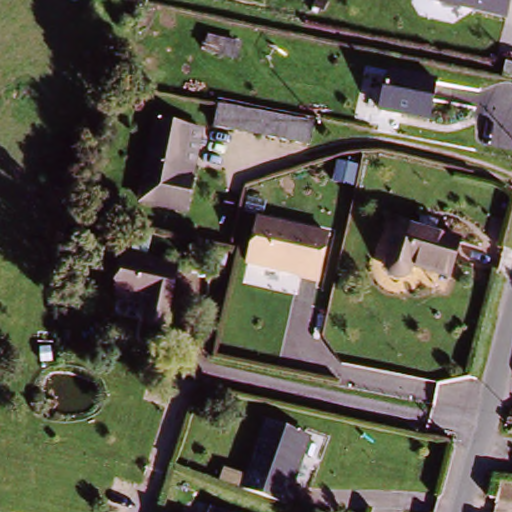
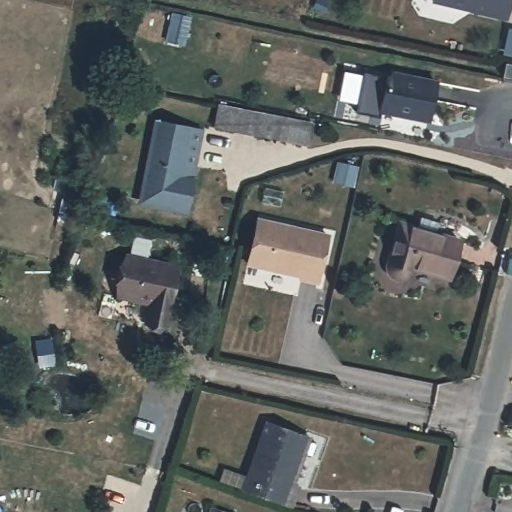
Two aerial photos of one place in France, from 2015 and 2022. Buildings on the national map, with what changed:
unchanged [(432,0),(512,0),(507,22),(431,5),(432,0)]
unchanged [(445,89),(438,126),(382,115),(391,76),(445,89)]
unchanged [(512,85),(512,87),(509,98),(498,96),(500,85),(500,83),(512,85)]
unchanged [(310,151),(209,130),(217,105),(315,125),(310,151)]
unchanged [(205,131),(186,215),(137,205),(155,121),(205,131)]
unchanged [(330,235),(319,284),(247,267),(257,219),(330,235)]
unchanged [(408,268),(405,282),(403,287),(380,281),(381,275),(387,255),(395,226),(459,243),(449,280),(422,272),(408,268)]
unchanged [(178,263),(167,329),(145,325),(149,300),(115,295),(122,254),(178,263)]
unchanged [(245,493),(262,425),(302,435),(290,483),(301,485),(295,508),(245,493)]
unchanged [(210,500),(243,512),(207,512),(210,500)]

